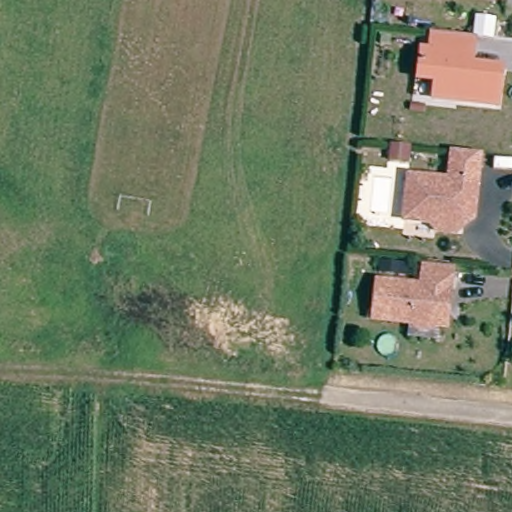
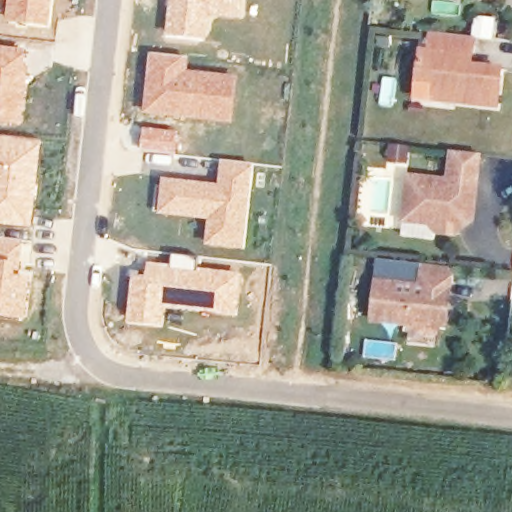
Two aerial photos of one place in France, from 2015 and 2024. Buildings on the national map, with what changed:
new [(49,27),(3,21),(6,1),(4,0),(52,0),(49,27)]
new [(168,0),(244,0),(241,19),(212,16),(207,40),(164,35),(168,0)]
unchanged [(469,33),(468,53),(460,52),(459,62),(500,66),(496,102),(432,97),(434,78),(414,77),(416,49),(425,49),(426,30),(426,29),(469,33)]
new [(28,50),(22,125),(0,122),(0,46),(28,50)]
new [(149,52),(190,57),(188,70),(238,76),(233,124),(140,112),(149,52)]
unchanged [(421,124),(420,141),(400,139),(401,122),(421,124)]
new [(140,127),(178,131),(175,156),(138,150),(140,127)]
new [(43,141),(31,229),(0,225),(0,135),(43,141)]
unchanged [(401,218),(405,174),(446,177),(449,148),(476,150),(473,185),(472,196),(470,216),(461,223),(454,222),(435,221),(401,218)]
new [(160,177),(217,183),(220,159),(253,164),(243,250),(204,245),(206,220),(154,214),(160,177)]
unchanged [(402,238),(402,239),(402,246),(384,244),(385,237),(402,238)]
new [(23,241),(19,275),(30,276),(25,320),(0,316),(0,238),(23,241)]
new [(131,274),(144,275),(147,262),(170,265),(171,254),(197,258),(196,268),(241,273),(236,316),(166,306),(163,328),(125,322),(131,274)]
unchanged [(451,264),(449,288),(445,287),(442,325),(372,318),(375,280),(420,284),(422,262),(422,261),(451,264)]

